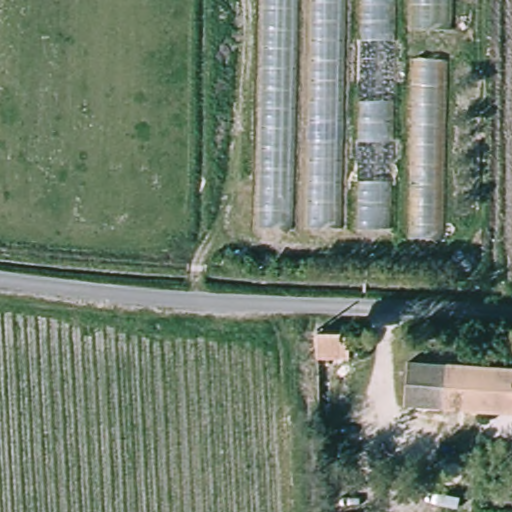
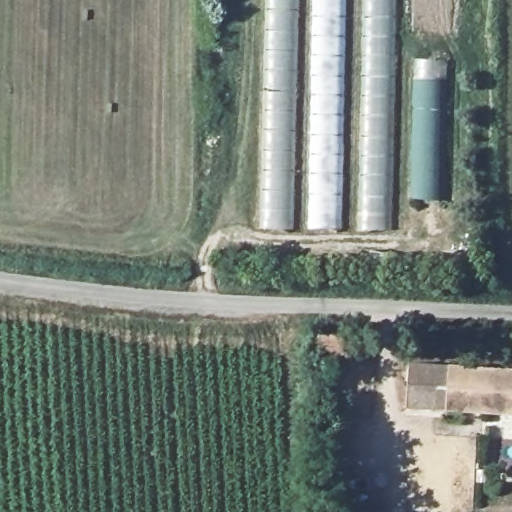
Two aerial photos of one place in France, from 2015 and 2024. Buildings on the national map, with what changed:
unchanged [(451,241),(263,227),(267,0),(455,0),(451,241)]
unchanged [(347,360),(315,360),(315,336),(347,337),(347,360)]
unchanged [(416,410),(418,365),(501,370),(500,413),(416,410)]
unchanged [(512,370),(512,414),(500,413),(501,370),(512,370)]

